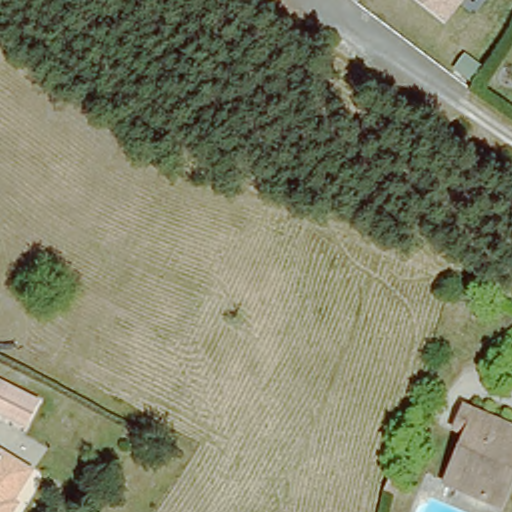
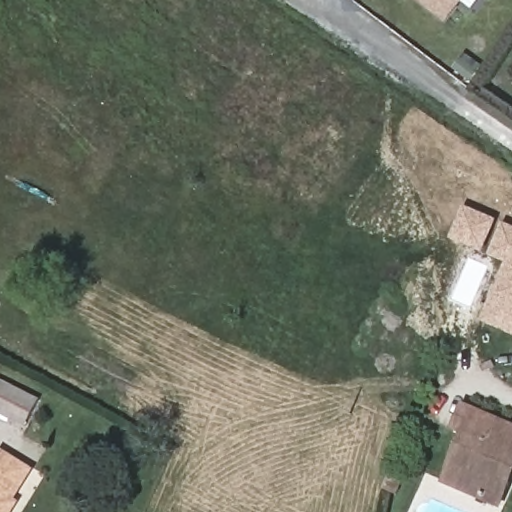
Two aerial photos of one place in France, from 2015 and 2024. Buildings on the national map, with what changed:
unchanged [(417,0),(465,0),(447,24),(417,0)]
new [(465,207),(498,221),(484,254),(452,242),(465,207)]
new [(491,297),(496,300),(497,297),(492,295),(506,264),(490,255),(505,225),(512,227),(512,336),(481,322),(491,297)]
unchanged [(26,427),(0,415),(0,379),(41,399),(26,427)]
unchanged [(499,477),(507,481),(497,502),(446,480),(466,434),(454,428),(465,407),(512,428),(512,455),(510,454),(499,477)]
unchanged [(31,470),(1,512),(0,512),(0,449),(31,470)]

